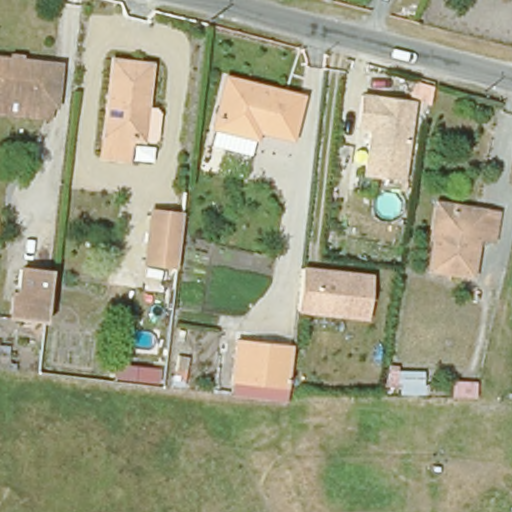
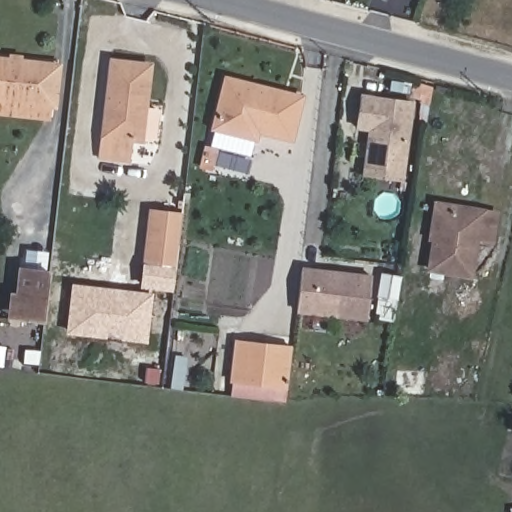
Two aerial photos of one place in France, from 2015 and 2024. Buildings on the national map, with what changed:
unchanged [(0,113),(0,61),(12,63),(12,56),(26,58),(25,64),(60,69),(55,110),(50,110),(49,119),(0,113)]
unchanged [(150,68),(146,108),(157,109),(161,115),(160,138),(153,143),(131,141),(130,162),(102,160),(111,64),(150,68)]
unchanged [(209,146),(213,130),(225,75),(305,96),(292,142),(258,136),(255,142),(250,156),(209,146)]
unchanged [(415,107),(405,184),(367,181),(373,134),(360,133),(365,100),(415,107)]
unchanged [(184,208),(176,266),(145,263),(150,207),(184,208)]
unchanged [(478,241),(471,277),(430,270),(435,244),(428,243),(435,207),(481,214),(497,217),(493,244),(478,241)]
unchanged [(15,319),(17,295),(11,294),(15,269),(45,273),(39,322),(15,319)]
unchanged [(373,280),(368,323),(298,315),(303,273),(373,280)]
new [(152,292),(147,343),(121,339),(122,334),(106,333),(105,337),(66,332),(72,284),(152,292)]
unchanged [(238,337),(294,342),(290,380),(288,396),(282,397),(232,392),(235,375),(238,337)]
new [(2,345),(0,357),(0,345),(2,345)]
unchanged [(400,390),(386,388),(390,366),(398,368),(398,374),(425,374),(424,386),(428,387),(429,396),(400,396),(400,390)]
unchanged [(159,386),(112,381),(114,367),(161,374),(159,386)]

